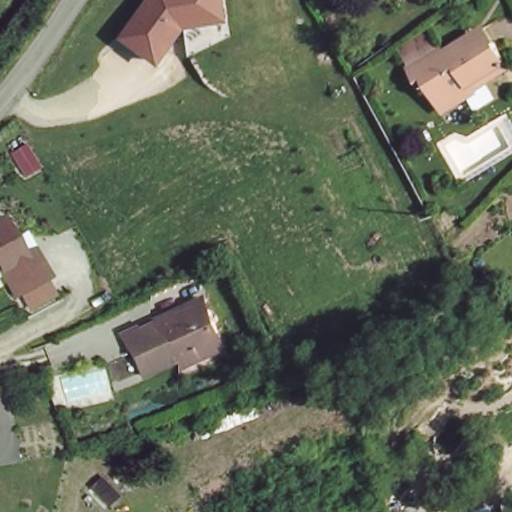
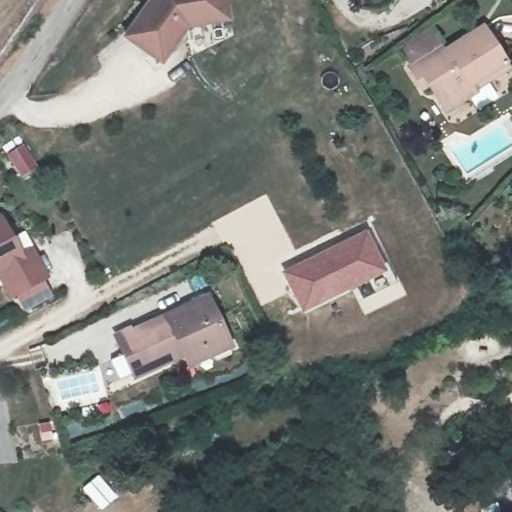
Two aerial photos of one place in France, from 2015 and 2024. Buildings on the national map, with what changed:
unchanged [(228,0),(231,21),(188,29),(161,67),(123,39),(148,0),(228,0)]
unchanged [(478,107),(470,96),(445,112),(428,85),(423,88),(411,69),(440,50),(444,54),(483,30),(503,62),(508,70),(487,84),(495,96),(478,107)]
unchanged [(31,245),(45,271),(11,290),(0,270),(0,213),(20,250),(31,245)]
new [(281,273),(366,231),(384,271),(301,312),(281,273)]
unchanged [(185,357),(138,378),(121,340),(211,300),(233,348),(213,357),(190,367),(185,357)]

